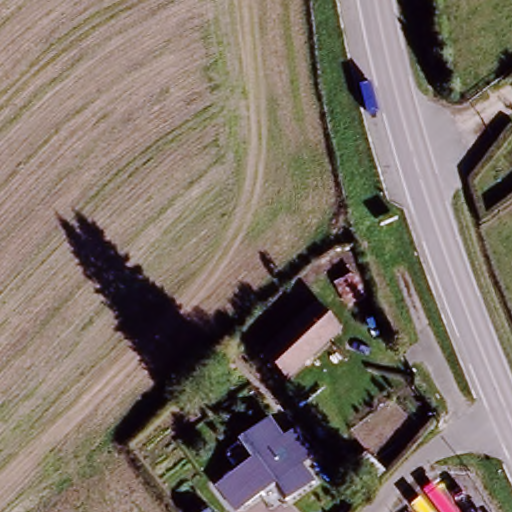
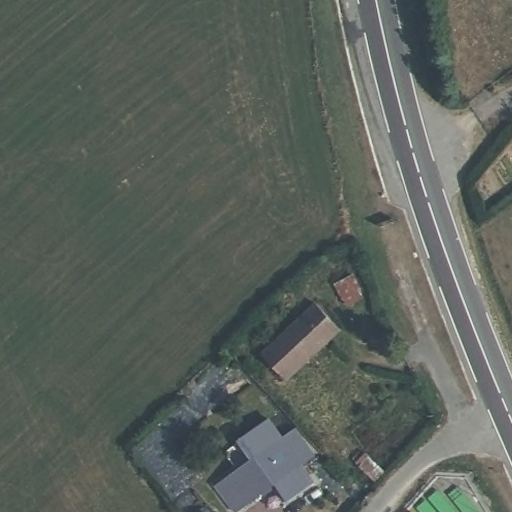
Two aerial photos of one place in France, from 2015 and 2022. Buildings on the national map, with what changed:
unchanged [(260,358),(317,307),(331,324),(339,333),(321,351),(284,385),(260,358)]
unchanged [(282,503),(270,485),(230,511),(225,503),(213,486),(225,478),(253,460),(241,438),(270,418),(284,441),(294,433),(311,458),(299,466),(312,483),(282,503)]

